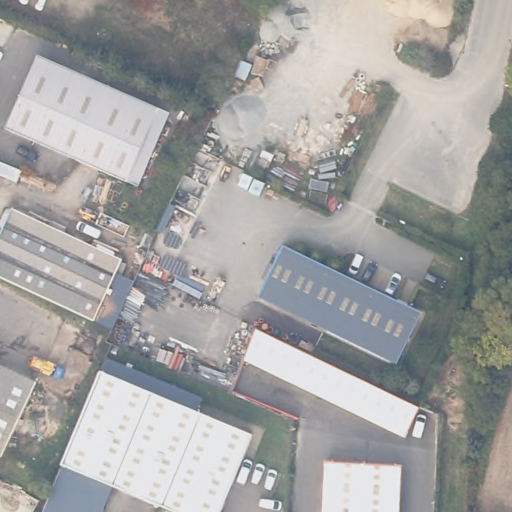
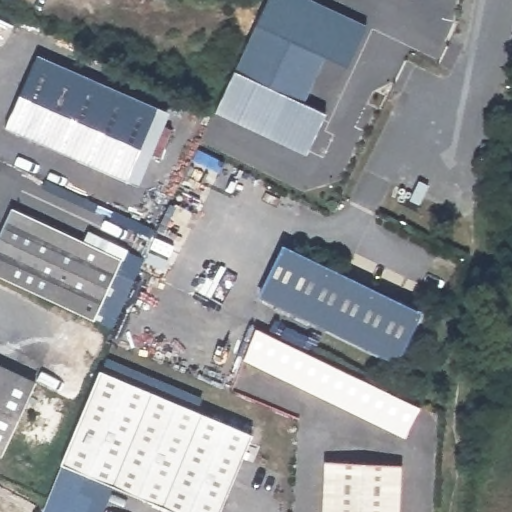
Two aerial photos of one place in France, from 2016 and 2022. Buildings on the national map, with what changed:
new [(268,0),(312,0),(367,25),(348,66),(325,56),(304,103),(326,113),(307,154),(216,112),(218,108),(268,0)]
unchanged [(38,57),(170,115),(138,190),(126,185),(154,121),(33,68),(38,57)]
unchanged [(154,121),(126,185),(5,132),(33,68),(154,121)]
unchanged [(93,319),(0,276),(0,232),(11,207),(121,258),(93,319)]
unchanged [(283,248),(419,314),(397,359),(261,293),(283,248)]
unchanged [(414,403),(401,430),(255,359),(268,332),(414,403)]
unchanged [(1,454),(0,454),(0,366),(35,382),(1,454)]
unchanged [(68,447),(100,370),(252,433),(219,512),(177,512),(61,464),(68,447)]
unchanged [(402,465),(399,512),(323,512),(327,461),(402,465)]
new [(113,485),(102,512),(42,512),(41,511),(61,464),(113,485)]

